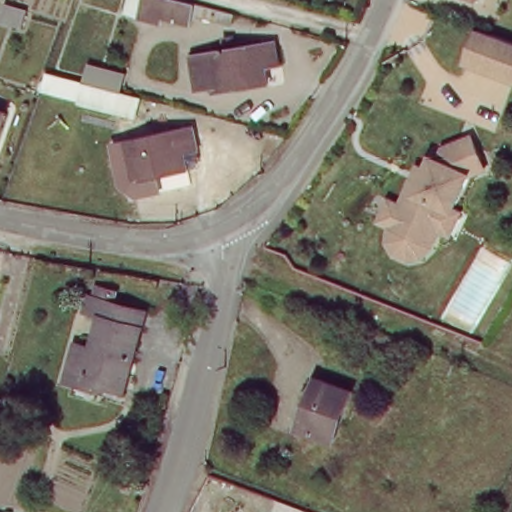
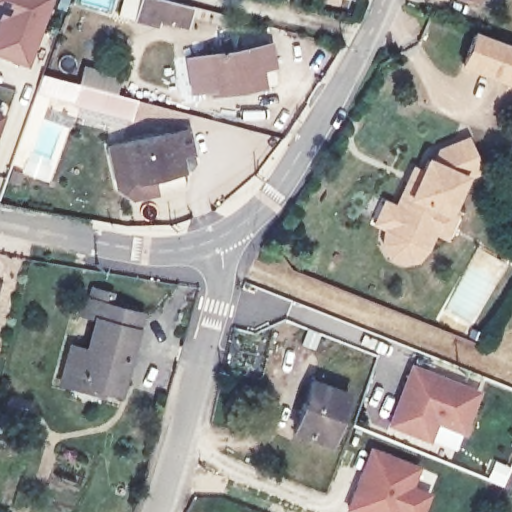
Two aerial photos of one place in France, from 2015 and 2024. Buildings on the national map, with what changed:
new [(0,0),(53,0),(29,69),(0,57),(0,0)]
unchanged [(180,36),(145,28),(114,21),(119,0),(145,0),(187,10),(180,36)]
unchanged [(466,65),(478,33),(489,37),(512,46),(512,83),(466,65)]
unchanged [(259,44),(263,66),(248,69),(250,86),(200,95),(193,55),(259,44)]
new [(123,77),(117,95),(138,101),(133,122),(74,106),(75,104),(36,94),(41,74),(79,84),(84,65),(123,77)]
demolished [(95,98),(124,105),(120,124),(63,110),(64,107),(68,91),(95,98)]
unchanged [(189,129),(194,151),(181,155),(185,172),(134,184),(133,178),(114,182),(108,149),(189,129)]
unchanged [(468,178),(444,235),(435,234),(423,256),(414,261),(404,261),(391,256),(385,248),(384,243),(385,231),(386,227),(375,222),(386,199),(398,203),(408,194),(425,151),(469,137),(483,152),(477,174),(468,178)]
unchanged [(78,348),(90,351),(97,315),(83,313),(87,296),(140,307),(122,391),(89,383),(87,390),(69,387),(71,379),(78,348)]
new [(384,425),(409,363),(481,392),(463,436),(435,424),(429,442),(384,425)]
unchanged [(350,391),(332,445),(294,430),(314,377),(350,391)]
new [(347,509),(369,449),(417,468),(409,487),(427,494),(420,512),(356,512),(347,509)]
demolished [(253,508),(258,494),(305,512),(264,512),(253,508)]

